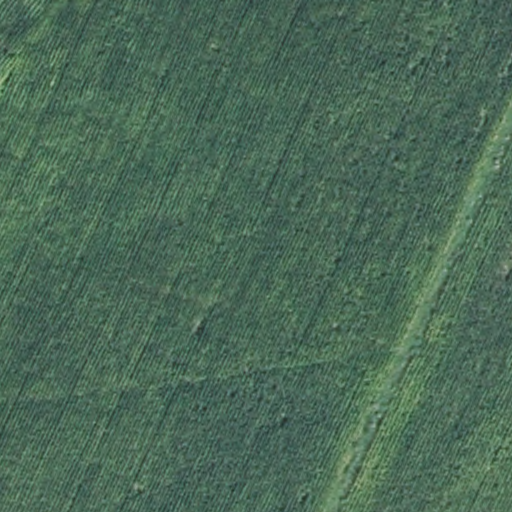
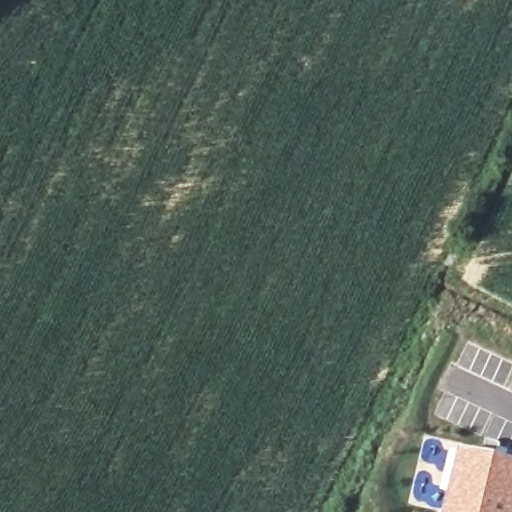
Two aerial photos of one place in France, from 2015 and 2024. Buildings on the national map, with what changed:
new [(512,464),(512,512),(443,512),(457,451),(512,464)]

